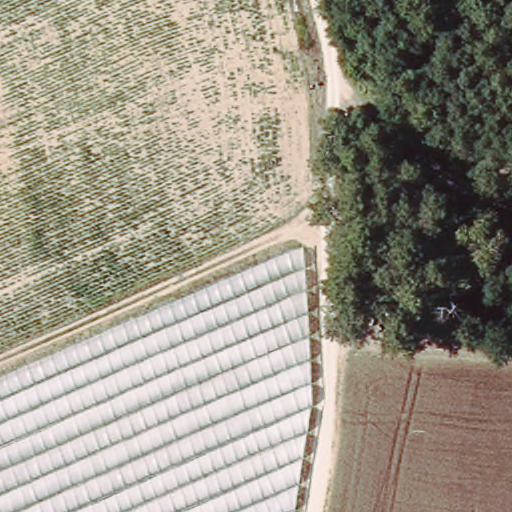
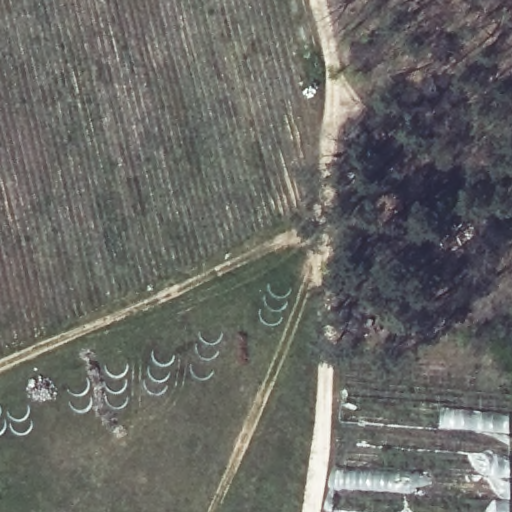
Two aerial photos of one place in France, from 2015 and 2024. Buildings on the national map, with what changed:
demolished [(51,353),(296,242),(313,265),(311,410),(295,512),(0,512),(0,376),(51,353)]

